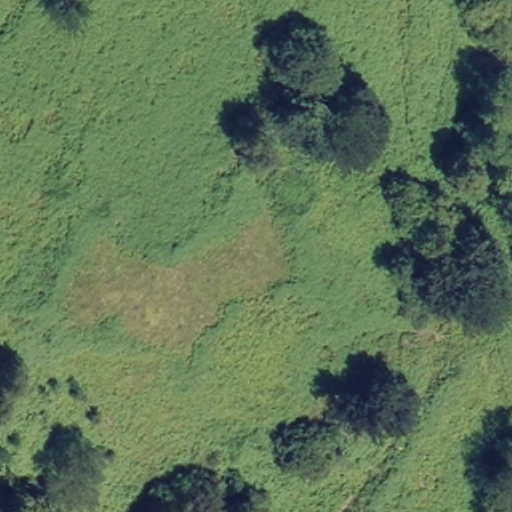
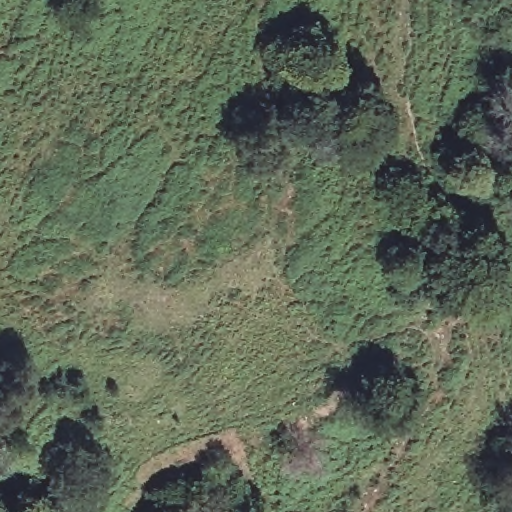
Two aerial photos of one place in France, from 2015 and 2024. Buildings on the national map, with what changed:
unchanged [(451,302),(409,285),(418,258),(461,275),(451,302)]

